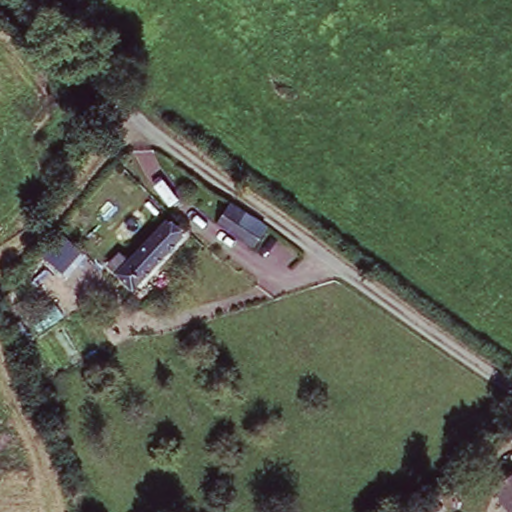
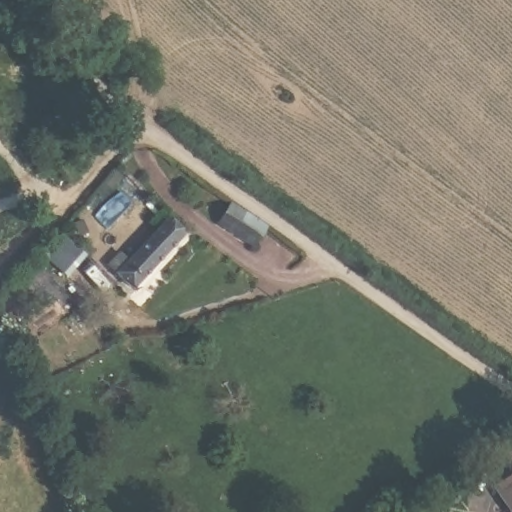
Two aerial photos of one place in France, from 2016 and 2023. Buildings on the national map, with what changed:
unchanged [(264,226),(250,247),(215,223),(230,202),(264,226)]
unchanged [(124,252),(133,257),(167,225),(183,236),(135,288),(112,265),(124,252)]
unchanged [(41,262),(63,231),(85,246),(63,277),(41,262)]
unchanged [(23,320),(32,340),(22,345),(12,327),(23,320)]
unchanged [(512,512),(505,512),(490,488),(512,476),(512,512)]

